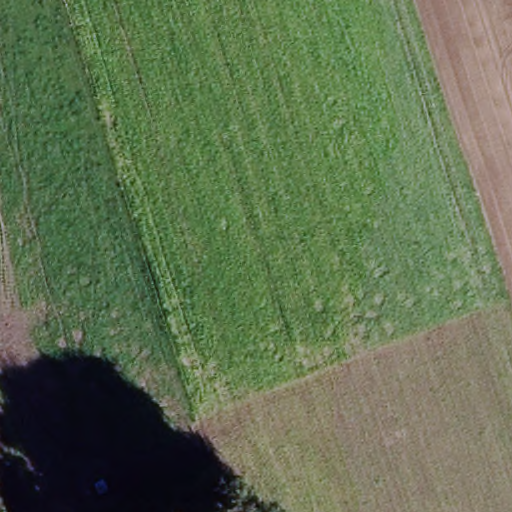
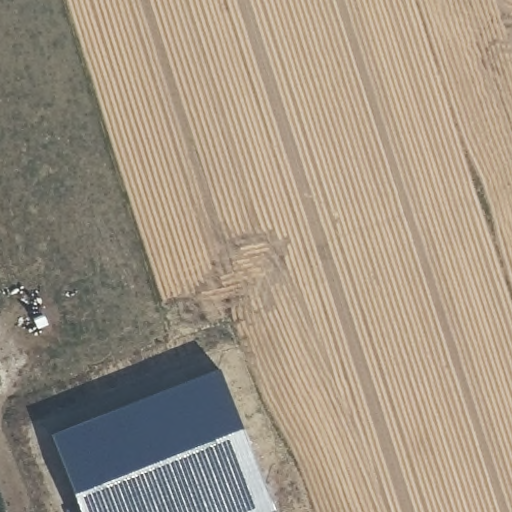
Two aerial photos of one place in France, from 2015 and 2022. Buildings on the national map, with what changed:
new [(53,433),(221,372),(275,509),(269,512),(83,512),(53,433)]

